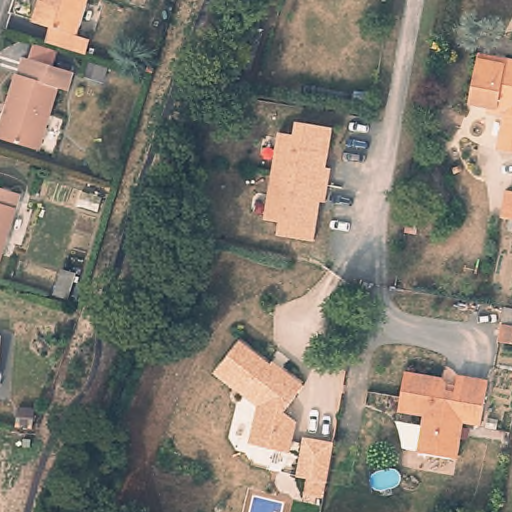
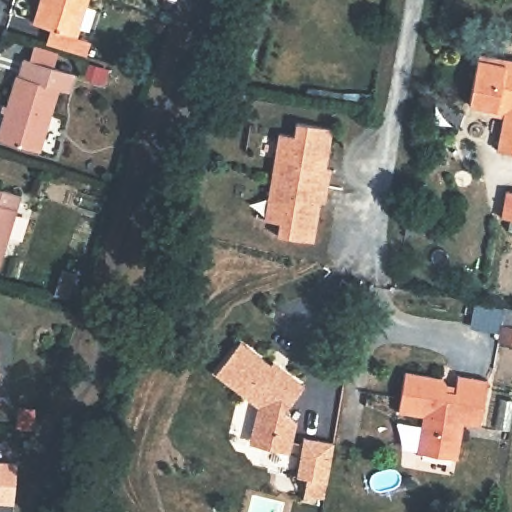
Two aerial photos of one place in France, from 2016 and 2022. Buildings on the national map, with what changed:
unchanged [(41,0),(88,0),(78,33),(50,26),(35,22),(41,0)]
unchanged [(87,57),(109,66),(104,84),(77,77),(84,57),(60,52),(43,48),(50,26),(78,33),(78,36),(92,40),(87,57)]
unchanged [(29,45),(43,48),(60,52),(59,61),(75,69),(70,92),(60,89),(41,152),(0,138),(0,128),(29,45)]
unchanged [(508,107),(473,100),(480,63),(482,57),(510,62),(512,62),(512,148),(502,146),(508,107)]
unchanged [(278,139),(292,141),(295,128),(332,135),(325,174),(330,175),(324,208),(318,207),(312,247),(276,241),(278,229),(277,227),(265,226),(272,182),(278,139)]
unchanged [(20,190),(0,260),(0,184),(20,190)]
unchanged [(512,223),(510,222),(512,205),(512,223)]
unchanged [(497,322),(512,325),(512,341),(495,338),(497,322)]
unchanged [(0,367),(0,339),(2,340),(0,367)]
unchanged [(247,443),(255,412),(212,382),(237,348),(276,377),(277,374),(301,392),(280,418),(293,428),(286,457),(268,453),(246,448),(247,443)]
unchanged [(408,373),(443,380),(450,387),(450,392),(457,393),(461,377),(491,382),(482,427),(467,424),(461,459),(421,452),(426,417),(403,413),(408,373)]
unchanged [(301,474),(306,436),(335,440),(328,479),(301,474)]
new [(12,503),(12,512),(0,512),(0,459),(16,460),(12,503)]

